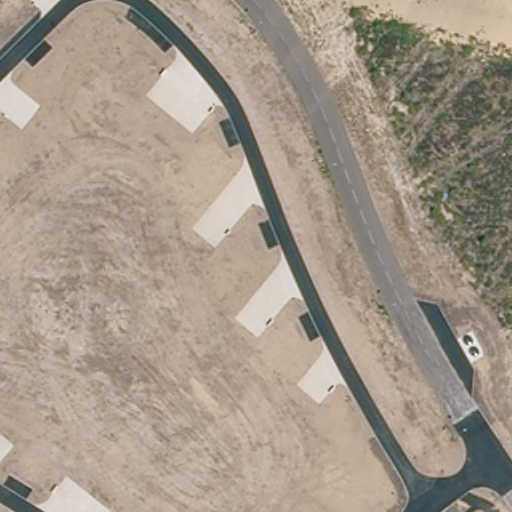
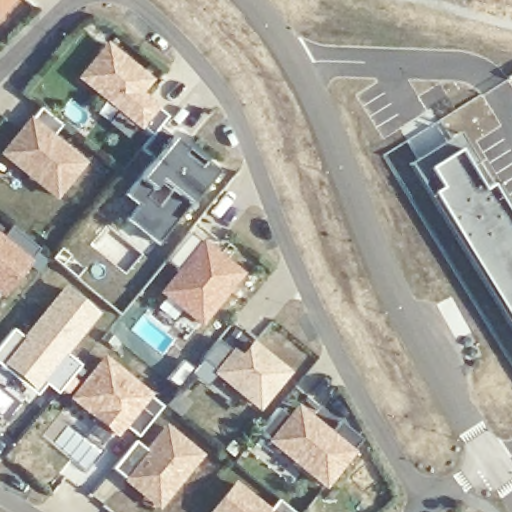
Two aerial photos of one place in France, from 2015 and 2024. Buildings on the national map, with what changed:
unchanged [(0,12),(0,0),(11,0),(0,12)]
new [(107,45),(150,80),(139,93),(167,117),(151,136),(81,78),(107,45)]
unchanged [(29,122),(40,108),(61,126),(51,138),(81,164),(55,197),(2,154),(22,129),(29,122)]
new [(171,139),(213,173),(187,206),(157,243),(126,220),(139,204),(125,195),(139,178),(156,159),(141,150),(151,136),(158,128),(171,139)]
new [(512,216),(512,320),(433,196),(411,163),(460,134),(491,184),(512,216)]
new [(0,240),(11,227),(39,250),(6,290),(0,285),(0,239),(0,240)]
new [(178,272),(165,261),(189,233),(239,274),(199,323),(161,292),(178,272)]
new [(99,316),(66,354),(80,365),(55,394),(46,385),(35,397),(0,368),(0,347),(13,332),(21,339),(63,287),(99,316)]
unchanged [(217,340),(241,360),(253,345),(287,373),(259,407),(201,360),(217,340)]
new [(163,404),(137,437),(124,428),(115,438),(67,400),(104,356),(163,404)]
new [(277,409),(288,418),(296,409),(328,435),(338,422),(361,440),(323,486),(258,432),(277,409)]
new [(125,480),(111,469),(134,441),(146,452),(166,428),(200,456),(165,497),(157,507),(125,480)]
new [(268,512),(277,500),(292,512),(213,512),(235,485),(268,512)]

